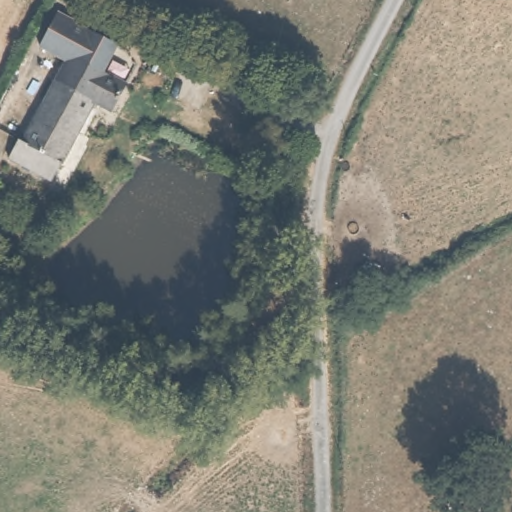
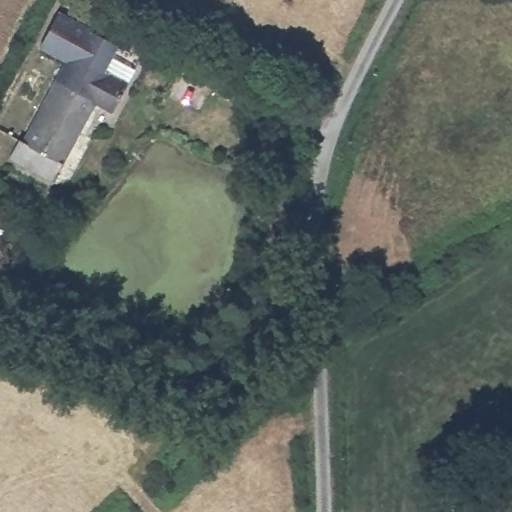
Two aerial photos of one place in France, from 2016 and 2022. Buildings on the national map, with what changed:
unchanged [(125,91),(110,121),(90,111),(52,91),(63,71),(38,57),(56,22),(115,53),(102,80),(125,91)]
unchanged [(47,191),(5,169),(14,152),(19,154),(52,91),(90,111),(47,191)]

